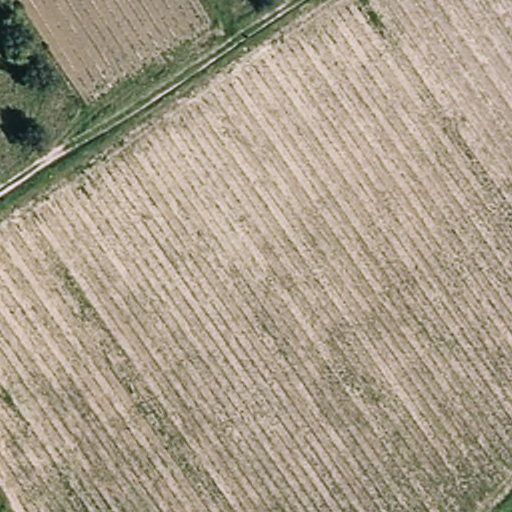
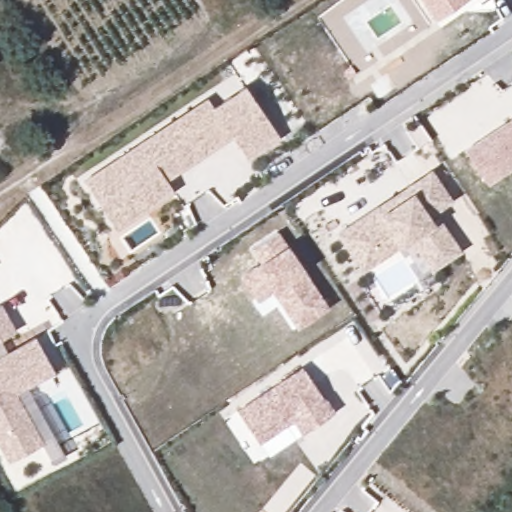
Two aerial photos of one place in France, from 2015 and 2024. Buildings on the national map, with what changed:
new [(437,22),(423,0),(470,0),(470,1),(463,5),(437,22)]
new [(102,211),(82,181),(155,133),(165,146),(215,114),(212,108),(245,86),(278,136),(246,158),(230,134),(178,169),(163,179),(171,190),(136,213),(114,228),(102,211)]
new [(206,99),(212,108),(215,114),(165,146),(155,133),(206,99)]
new [(512,120),(512,167),(487,184),(465,151),(472,146),(512,120)]
new [(421,258),(408,239),(400,245),(361,271),(354,260),(337,235),(377,208),(405,189),(430,173),(449,201),(425,217),(430,224),(436,220),(457,252),(435,267),(430,270),(421,258)]
new [(265,257),(255,244),(280,228),(330,303),(300,323),(275,284),(260,294),(244,271),(265,257)]
new [(33,443),(8,456),(0,440),(0,352),(36,333),(49,358),(53,366),(14,387),(27,412),(41,438),(33,443)]
new [(305,364),(335,410),(304,430),(295,416),(260,439),(239,408),(305,364)]

